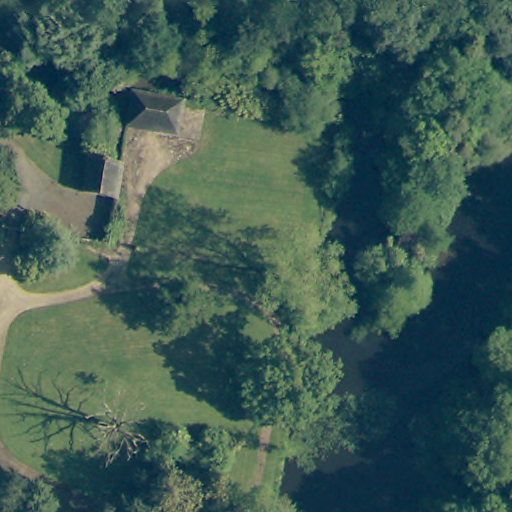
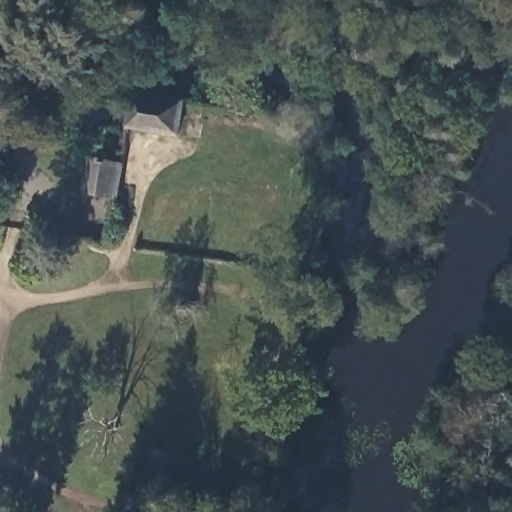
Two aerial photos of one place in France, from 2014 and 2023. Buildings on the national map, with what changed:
unchanged [(182,104),(175,141),(125,135),(132,95),(182,104)]
unchanged [(87,162),(124,168),(118,203),(80,195),(87,162)]

